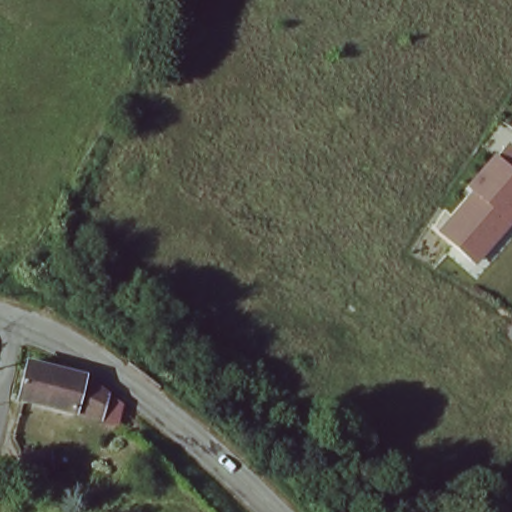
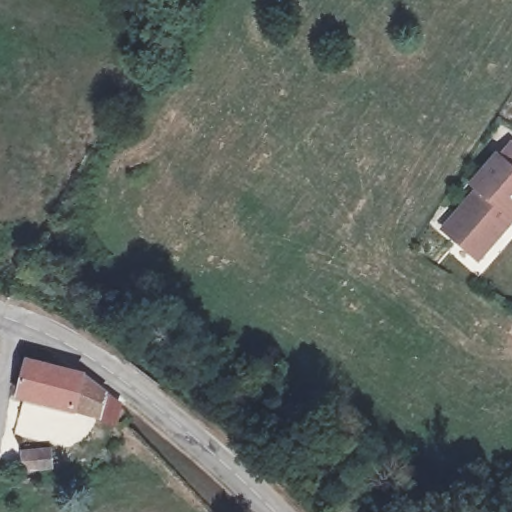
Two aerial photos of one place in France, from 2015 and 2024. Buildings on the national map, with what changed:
unchanged [(481,265),(440,232),(473,191),(469,188),(511,140),(512,141),(512,227),(481,265)]
unchanged [(86,377),(98,385),(96,407),(20,398),(22,367),(80,373),(86,377)]
unchanged [(53,466),(20,468),(19,448),(50,446),(53,466)]

